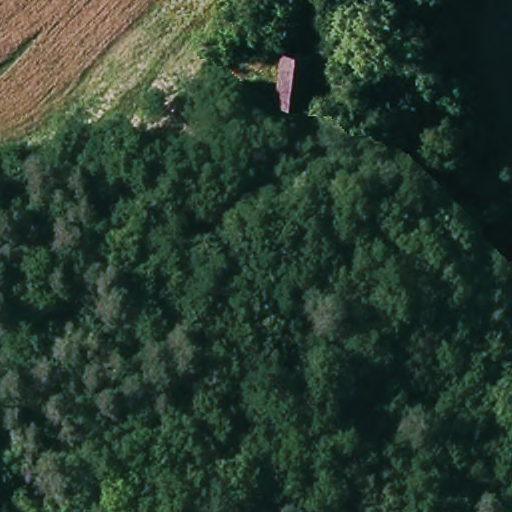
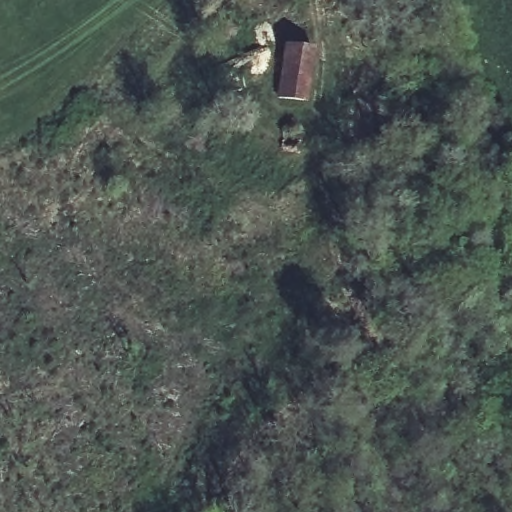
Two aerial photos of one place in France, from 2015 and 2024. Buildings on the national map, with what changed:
unchanged [(304,100),(278,98),(282,43),(308,45),(304,100)]
unchanged [(310,134),(305,148),(287,143),(292,130),(310,134)]

